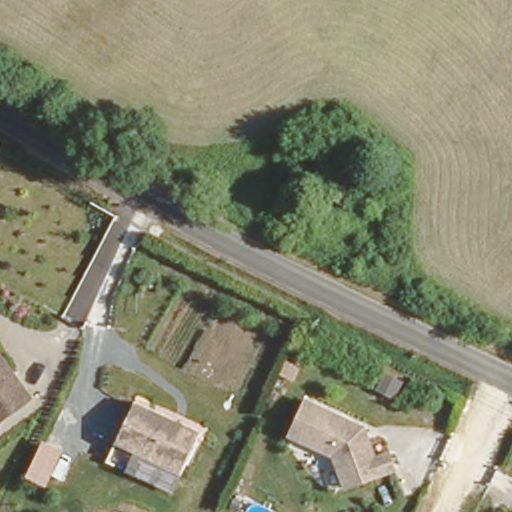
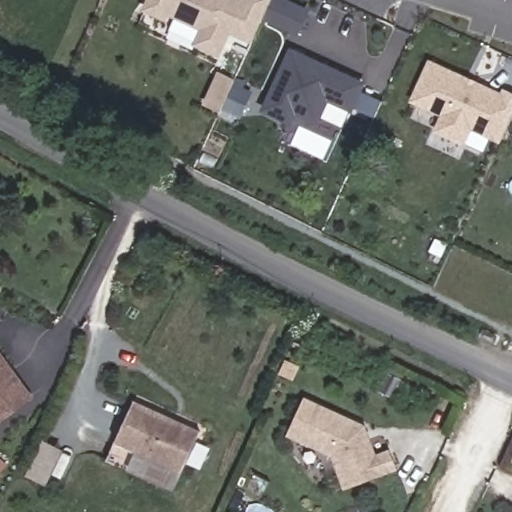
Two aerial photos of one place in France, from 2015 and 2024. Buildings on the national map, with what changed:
new [(299,37),(263,21),(252,46),(231,37),(220,63),(191,49),(197,31),(167,18),(165,23),(143,14),(149,0),(284,0),(310,12),(299,37)]
new [(366,84),(351,118),(327,106),(318,125),(297,116),(294,126),(262,113),(288,50),(366,84)]
new [(501,95),(504,90),(512,95),(512,121),(501,147),(473,134),(467,148),(435,134),(441,120),(409,106),(429,61),(501,95)]
new [(236,116),(235,118),(202,104),(217,70),(245,83),(243,87),(252,92),(241,118),(236,116)]
unchanged [(0,355),(27,393),(0,412),(0,355)]
unchanged [(306,399),(365,426),(367,431),(363,432),(366,440),(369,439),(375,456),(390,451),(396,467),(346,485),(334,453),(290,433),(306,399)]
unchanged [(126,402),(192,431),(173,474),(107,444),(126,402)]
new [(47,485),(27,475),(42,440),(63,450),(47,485)]
new [(0,457),(8,464),(0,473),(0,457)]

